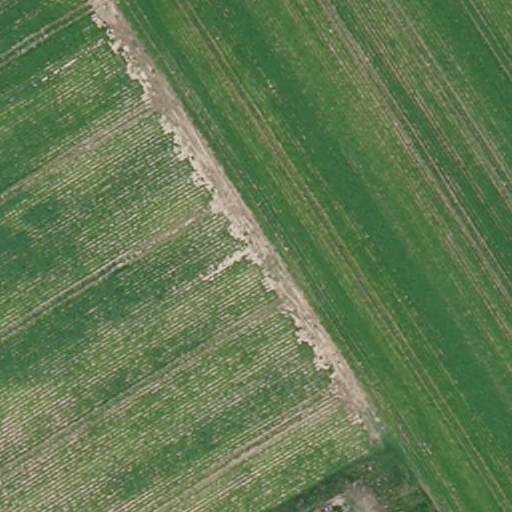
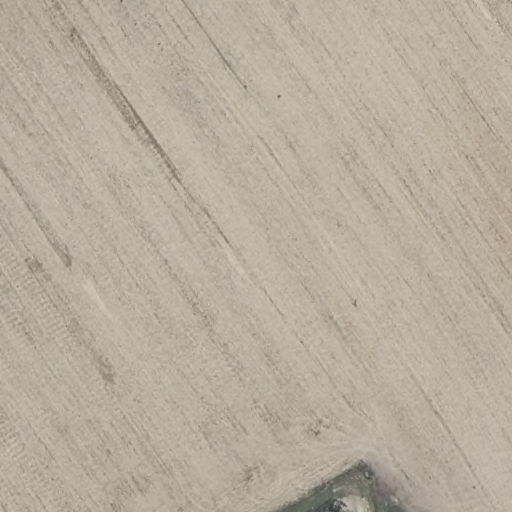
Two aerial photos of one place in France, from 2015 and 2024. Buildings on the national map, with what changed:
unchanged [(340,512),(339,512),(340,511),(340,512)]

